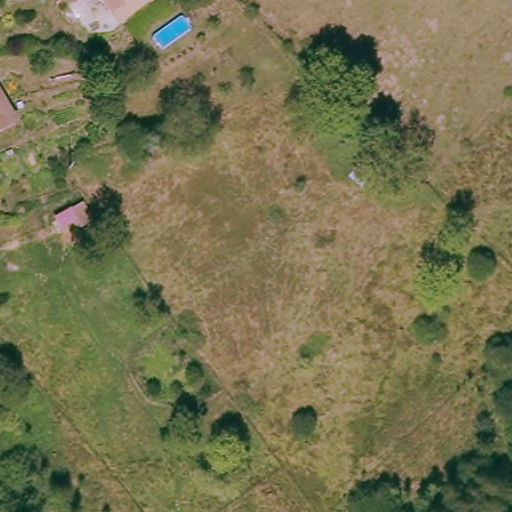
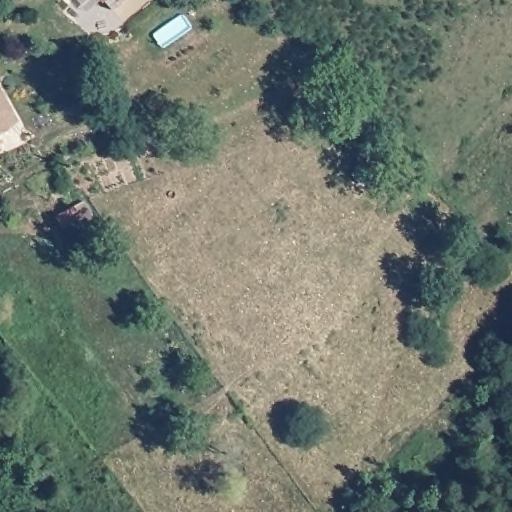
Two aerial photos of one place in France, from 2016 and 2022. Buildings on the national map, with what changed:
unchanged [(113,14),(101,0),(122,0),(126,5),(113,14)]
unchanged [(0,129),(0,94),(14,121),(0,129)]

